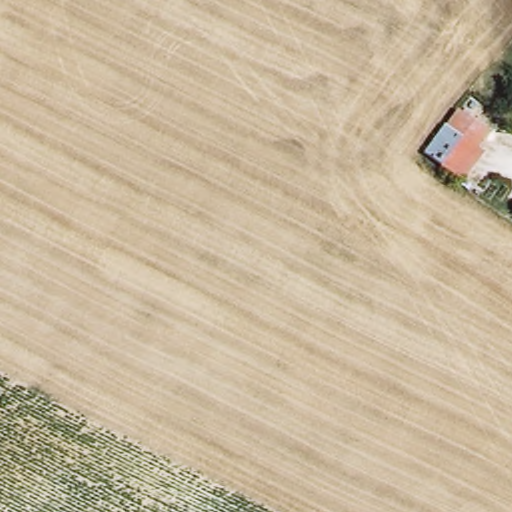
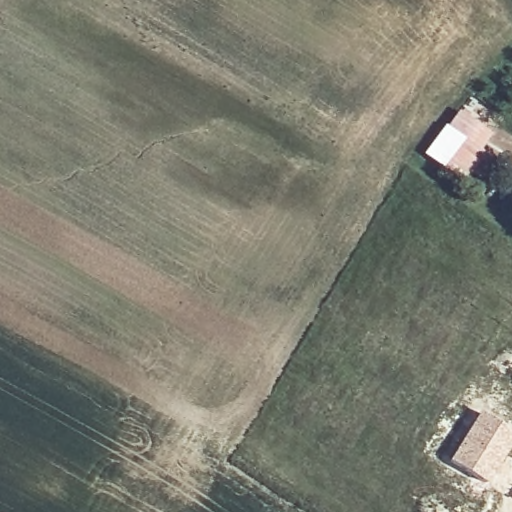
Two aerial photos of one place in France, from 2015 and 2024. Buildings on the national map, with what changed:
unchanged [(492,131),(481,148),(487,152),(465,181),(426,153),(456,110),(492,131)]
new [(479,411),(512,432),(512,449),(487,484),(448,459),(479,411)]

